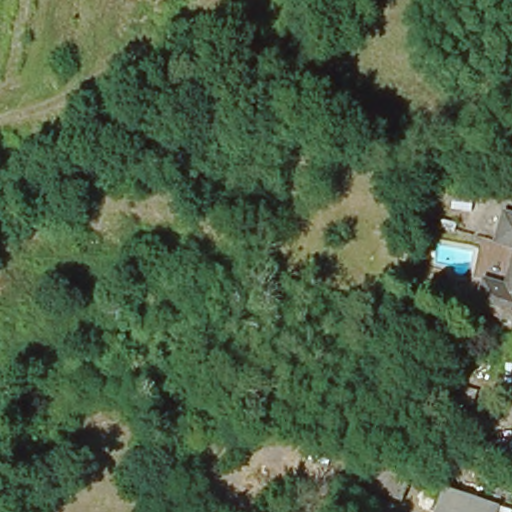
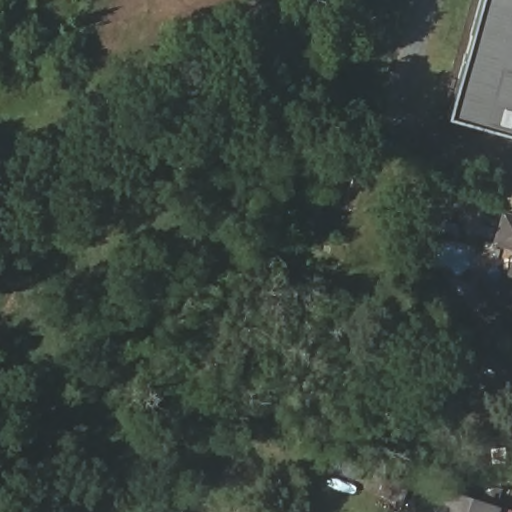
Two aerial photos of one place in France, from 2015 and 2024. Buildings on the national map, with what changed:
new [(481,0),(512,0),(512,136),(448,119),(481,0)]
unchanged [(512,248),(495,243),(505,212),(512,215),(512,248)]
unchanged [(462,225),(460,231),(446,227),(448,220),(462,225)]
unchanged [(484,281),(505,288),(512,265),(512,321),(475,310),(484,281)]
unchanged [(512,459),(460,461),(459,460),(458,460),(457,460),(457,459),(457,458),(456,458),(456,457),(455,457),(455,456),(455,455),(455,454),(455,453),(454,453),(454,452),(454,451),(454,450),(454,449),(454,448),(454,447),(454,446),(454,445),(455,445),(455,444),(455,443),(455,442),(455,441),(456,441),(456,440),(456,439),(457,439),(457,438),(458,437),(459,436),(512,434),(512,459)]
unchanged [(400,496),(365,485),(372,467),(406,479),(400,496)]
unchanged [(446,512),(437,509),(420,503),(425,484),(443,490),(492,505),(491,512),(446,512)]

